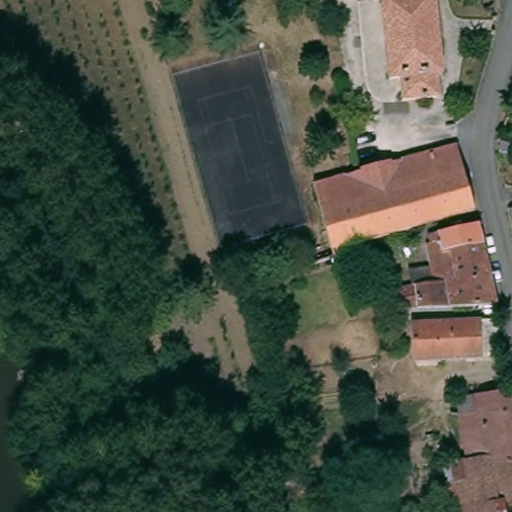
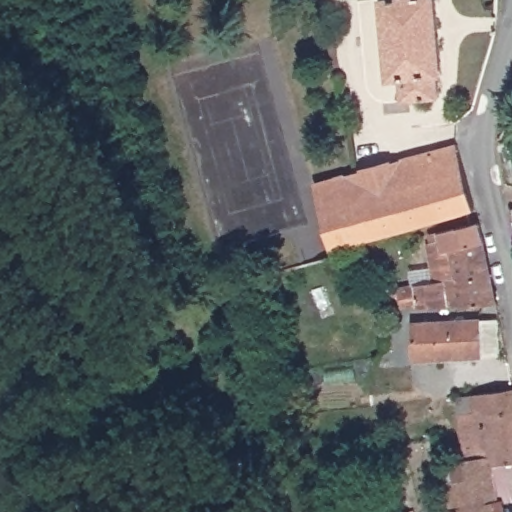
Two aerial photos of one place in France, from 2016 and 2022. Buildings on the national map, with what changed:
unchanged [(439,75),(441,97),(403,101),(401,84),(396,85),(396,79),(389,80),(381,0),(436,0),(443,75),(439,75)]
unchanged [(469,189),(474,209),(442,218),(419,224),(405,228),(389,163),(412,156),(457,143),(469,189)]
unchanged [(374,166),(389,163),(405,228),(402,229),(385,234),(368,168),(374,166)]
unchanged [(327,226),(315,183),(368,168),(385,234),(356,242),(336,247),(339,257),(335,258),(327,226)]
unchanged [(439,233),(478,224),(480,234),(483,244),(495,291),(498,304),(494,304),(463,307),(451,307),(389,311),(388,297),(400,295),(400,289),(419,285),(434,283),(430,244),(441,240),(439,233)]
unchanged [(423,324),(491,320),(493,358),(425,362),(423,324)]
unchanged [(481,416),(480,409),(461,411),(460,398),(512,392),(512,412),(481,416)]
unchanged [(471,504),(452,507),(449,484),(471,481),(469,460),(461,411),(480,409),(481,416),(512,412),(512,500),(505,502),(472,509),(471,504)]
unchanged [(505,502),(507,512),(462,512),(462,511),(472,509),(505,502)]

